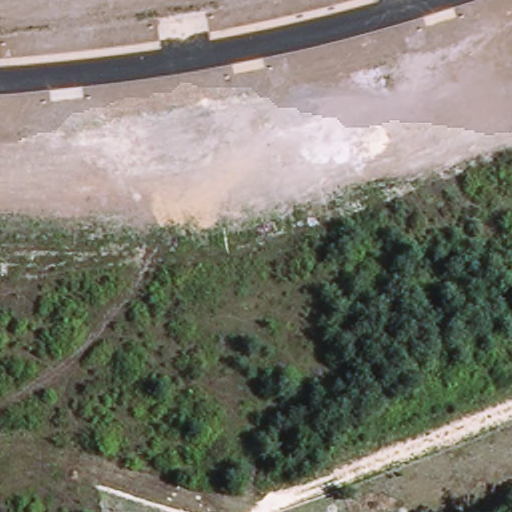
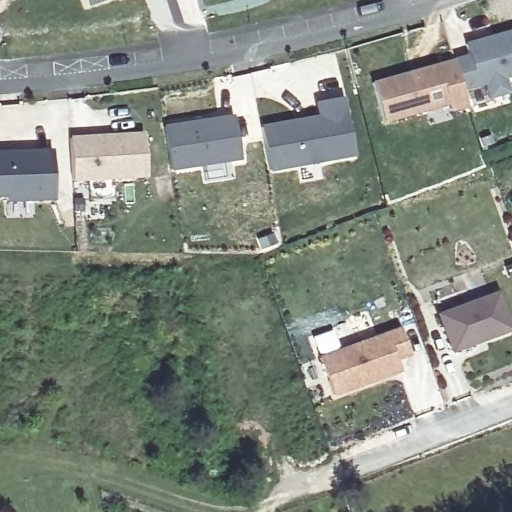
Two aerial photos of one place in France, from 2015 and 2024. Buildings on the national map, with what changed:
new [(87,5),(85,0),(99,0),(87,5)]
new [(485,85),(462,91),(452,59),(469,54),(465,44),(512,30),(512,77),(505,79),(509,93),(489,100),(485,85)]
new [(467,108),(449,113),(447,107),(384,124),(372,81),(452,59),(467,108)]
new [(270,172),(261,127),(317,116),(316,104),(343,98),(354,156),(270,172)]
new [(165,128),(232,118),(239,160),(228,161),(231,178),(202,183),(199,165),(170,169),(165,128)]
new [(144,133),(146,174),(73,179),(70,137),(144,133)]
new [(54,152),(55,194),(0,196),(0,154),(7,154),(35,153),(54,152)]
new [(497,291),(510,328),(452,349),(439,312),(497,291)]
new [(402,326),(412,352),(398,357),(402,369),(335,393),(322,357),(402,326)]

